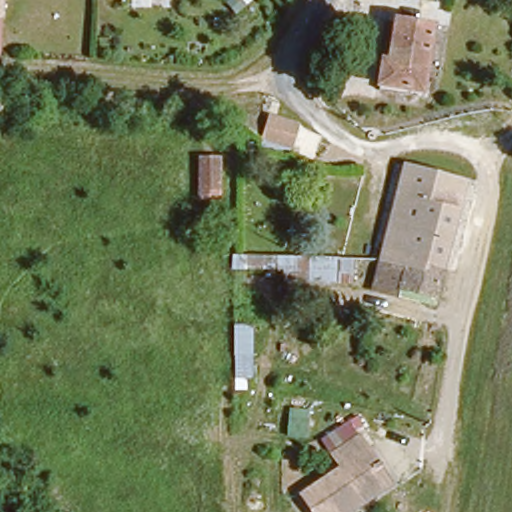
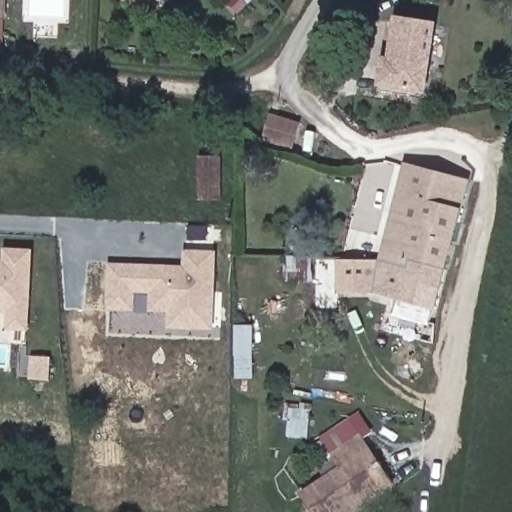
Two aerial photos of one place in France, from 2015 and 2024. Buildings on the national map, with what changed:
unchanged [(376,81),(380,51),(391,51),(396,11),(431,16),(420,90),(376,81)]
unchanged [(257,138),(262,116),(291,124),(286,146),(257,138)]
unchanged [(194,194),(194,156),(213,155),(213,195),(194,194)]
unchanged [(400,290),(394,288),(376,285),(380,266),(376,265),(398,169),(459,183),(435,278),(430,297),(427,308),(397,300),(400,290)]
unchanged [(295,251),(293,262),(246,257),(245,247),(295,251)]
new [(6,330),(7,312),(0,312),(0,260),(3,260),(3,248),(32,250),(29,330),(6,330)]
new [(212,330),(166,329),(167,313),(147,312),(149,295),(135,293),(134,312),(105,310),(106,263),(182,266),(182,250),(216,250),(212,330)]
unchanged [(325,278),(325,254),(352,255),(351,283),(325,278)]
new [(252,355),(252,378),(234,378),(234,355),(235,325),(254,325),(252,355)]
unchanged [(395,483),(352,512),(312,512),(295,488),(337,465),(325,450),(361,430),(395,483)]

